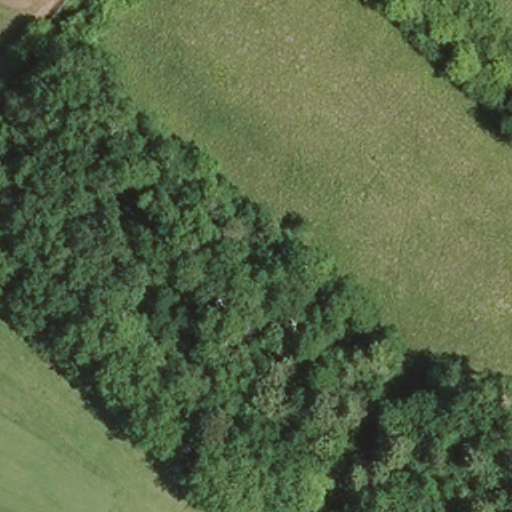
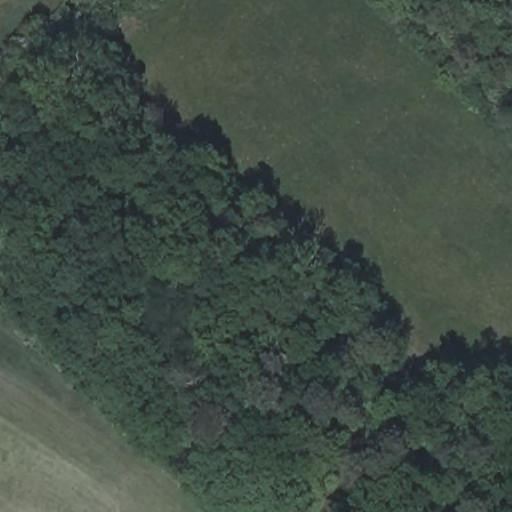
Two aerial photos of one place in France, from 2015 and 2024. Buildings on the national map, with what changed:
[]

